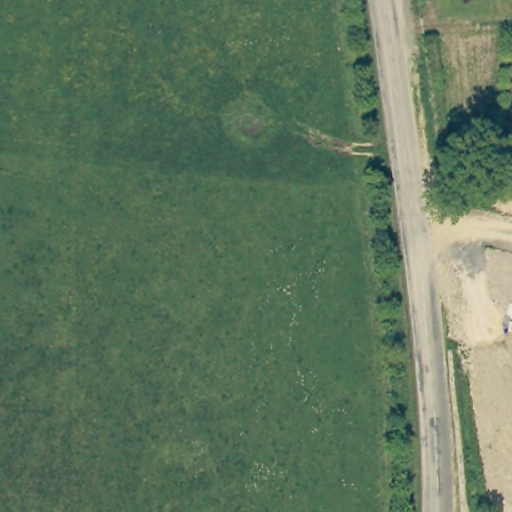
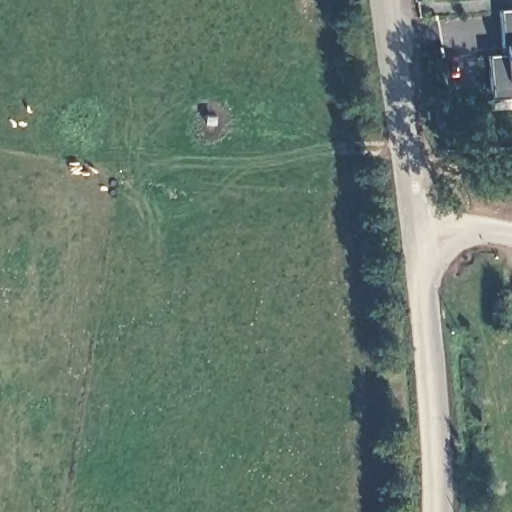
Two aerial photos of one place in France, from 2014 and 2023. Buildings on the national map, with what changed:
new [(512,11),(512,99),(491,101),(487,58),(504,56),(500,12),(512,11)]
unchanged [(512,170),(512,185),(494,186),(493,170),(512,170)]

